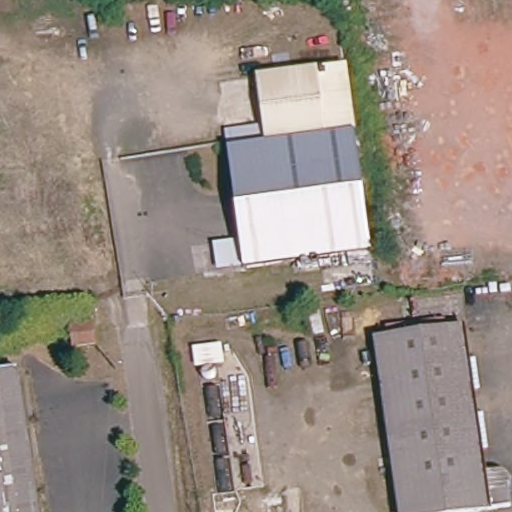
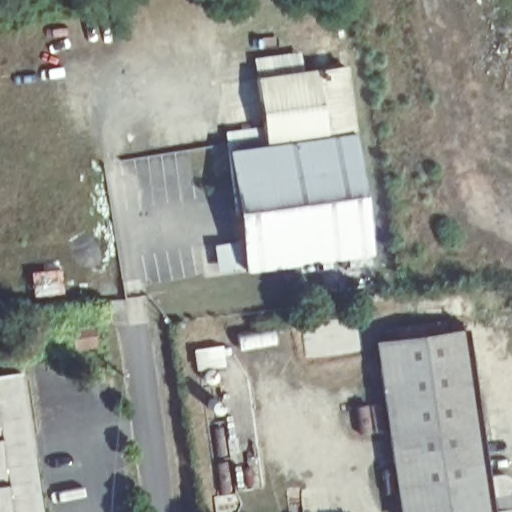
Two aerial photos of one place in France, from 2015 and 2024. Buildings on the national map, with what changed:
unchanged [(344,69),(355,136),(269,150),(259,82),(344,69)]
unchanged [(269,150),(355,136),(373,253),(370,254),(250,272),(232,156),(269,150)]
unchanged [(93,321),(95,341),(75,344),(71,324),(93,321)]
unchanged [(486,480),(508,477),(512,508),(512,511),(506,512),(401,512),(377,343),(465,331),(486,480)]
unchanged [(38,460),(32,460),(39,512),(0,512),(0,379),(26,375),(38,460)]

